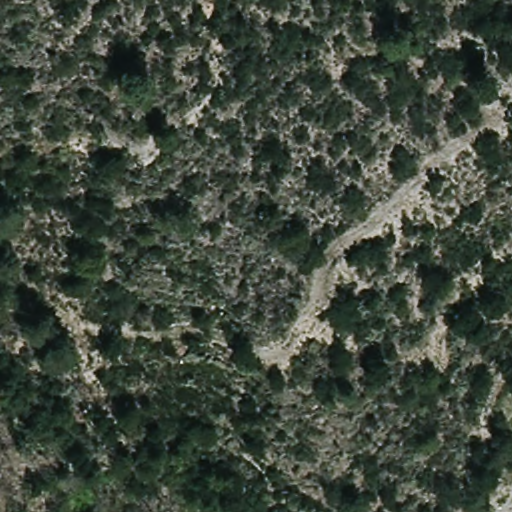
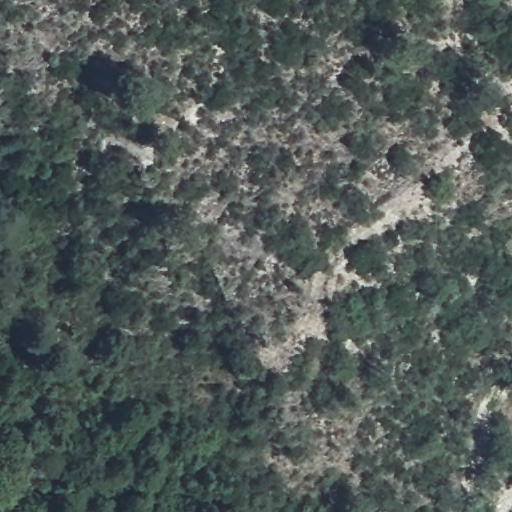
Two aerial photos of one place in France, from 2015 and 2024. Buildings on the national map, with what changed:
[]

